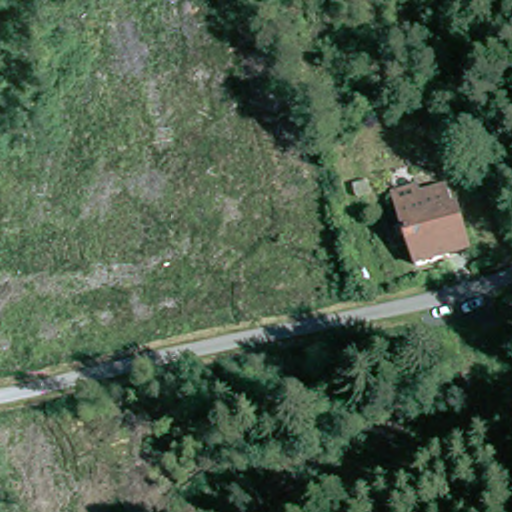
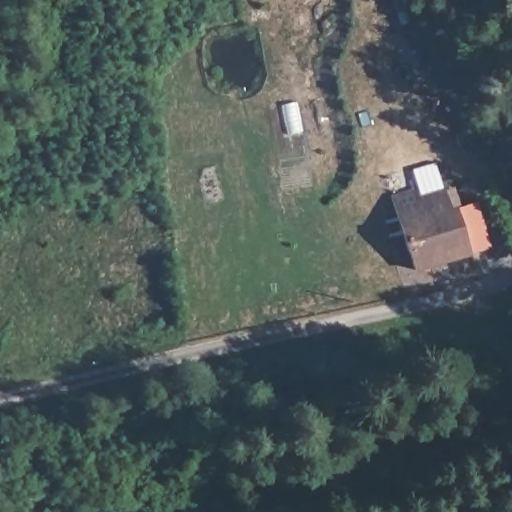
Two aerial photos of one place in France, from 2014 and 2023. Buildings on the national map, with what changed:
unchanged [(424,271),(423,265),(414,242),(406,245),(402,232),(411,230),(399,195),(436,183),(438,189),(449,185),(456,206),(462,204),(477,250),(478,255),(424,271)]

